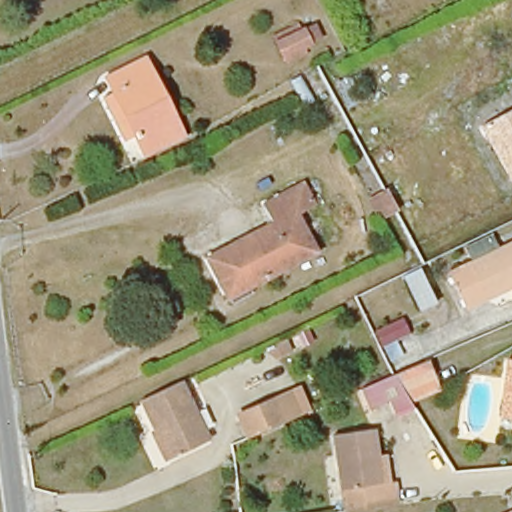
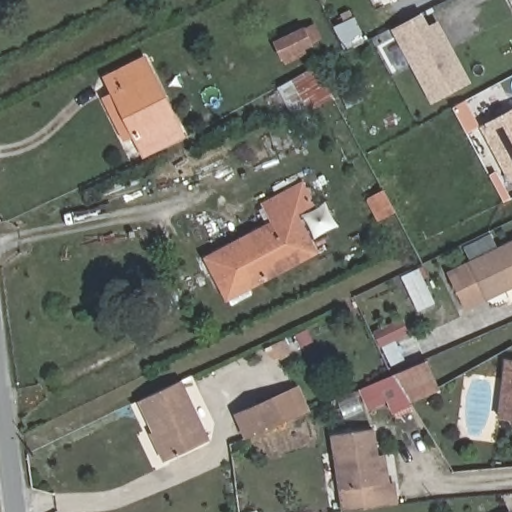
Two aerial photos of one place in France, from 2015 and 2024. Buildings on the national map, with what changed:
new [(471,82),(430,102),(391,29),(422,13),(428,25),(438,21),(471,82)]
unchanged [(137,140),(135,137),(123,144),(104,105),(116,100),(105,79),(144,58),(176,119),(181,130),(183,134),(144,155),(137,140)]
new [(315,68),(328,92),(331,90),(335,97),(302,115),(300,110),(305,107),(300,99),(289,105),(280,87),(315,68)]
unchanged [(511,181),(482,126),(512,109),(512,180),(511,181)]
unchanged [(224,297),(218,285),(204,259),(274,222),(271,216),(265,205),(301,187),(307,198),(311,204),(291,215),(312,250),(314,255),(246,290),(249,296),(230,307),(224,297)]
unchanged [(373,232),(367,223),(361,212),(379,202),(385,213),(391,224),(373,232)]
unchanged [(512,244),(512,286),(506,289),(466,309),(447,275),(512,244)]
unchanged [(512,286),(512,301),(506,289),(512,286)]
unchanged [(406,351),(414,366),(397,375),(389,360),(406,351)]
unchanged [(503,419),(509,362),(512,362),(512,420),(503,419)]
unchanged [(394,384),(426,369),(438,394),(412,409),(394,384)]
unchanged [(183,380),(214,444),(171,465),(158,438),(162,436),(144,398),(183,380)]
unchanged [(232,421),(267,404),(281,398),(291,420),(287,423),(279,427),(243,445),(232,421)]
unchanged [(343,512),(332,436),(373,431),(381,484),(394,483),(397,506),(354,512),(343,512)]

